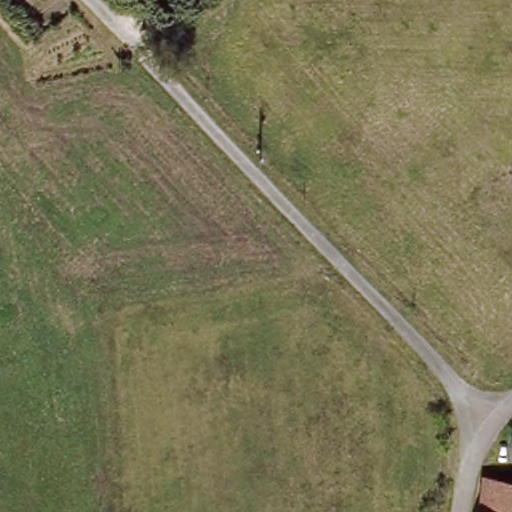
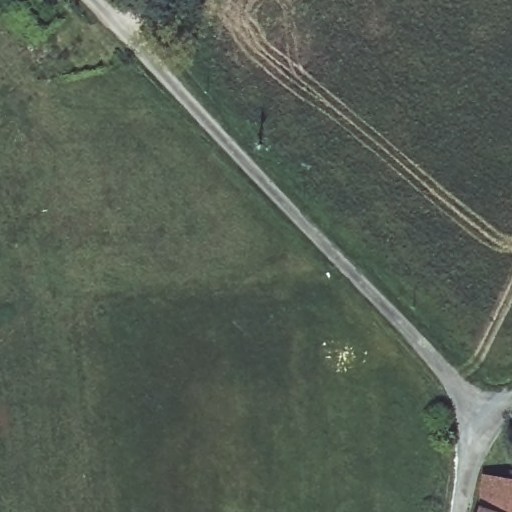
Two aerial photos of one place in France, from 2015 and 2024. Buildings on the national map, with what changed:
unchanged [(512,481),(512,512),(476,512),(485,478),(512,481)]

